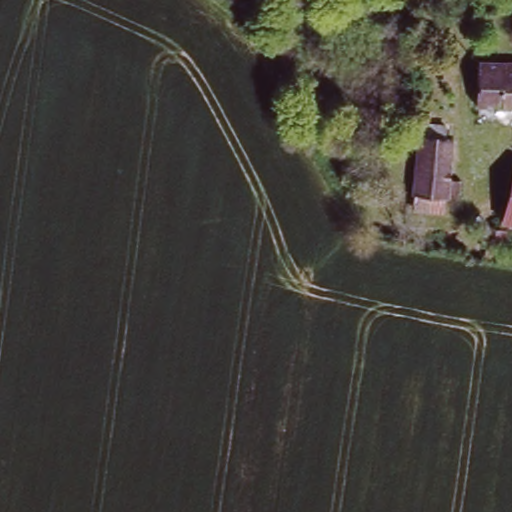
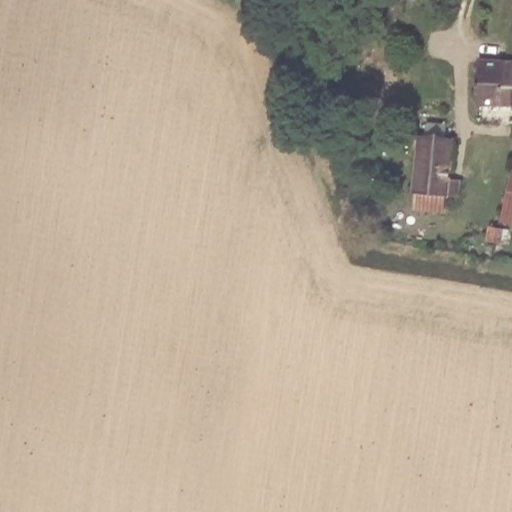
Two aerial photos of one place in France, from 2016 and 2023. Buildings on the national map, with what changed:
unchanged [(512,62),(512,105),(480,105),(480,62),(512,62)]
unchanged [(415,217),(415,201),(415,199),(414,130),(455,129),(455,143),(448,143),(449,184),(459,184),(460,209),(441,209),(441,217),(415,217)]
unchanged [(512,223),(511,223),(512,216),(512,223)]
unchanged [(498,227),(509,229),(506,243),(496,240),(498,227)]

